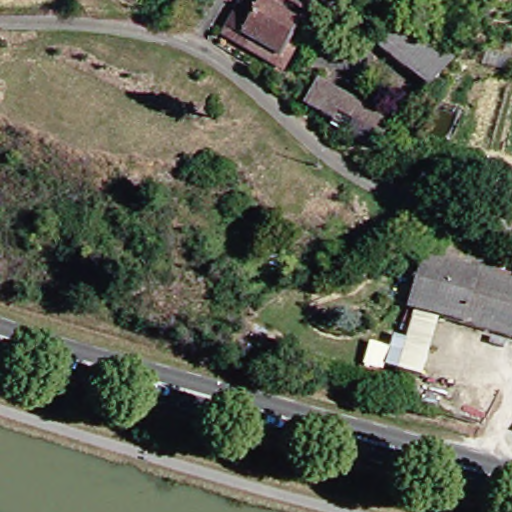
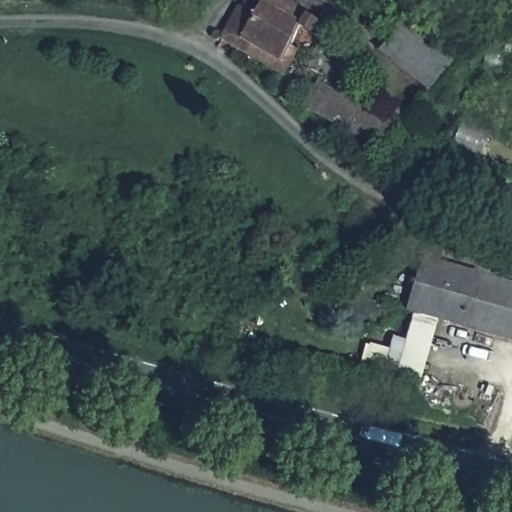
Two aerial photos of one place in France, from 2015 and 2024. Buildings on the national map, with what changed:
unchanged [(259,0),(284,0),(295,6),(295,10),(312,20),(305,33),(295,28),(280,53),(289,56),(279,75),(261,66),(230,49),(235,40),(259,0)]
unchanged [(425,91),(377,51),(400,23),(447,61),(425,91)]
unchanged [(316,76),(390,123),(371,153),(301,106),(316,76)]
unchanged [(422,254),(512,280),(512,343),(405,312),(422,254)]
unchanged [(287,344),(274,365),(237,349),(247,327),(287,344)]

